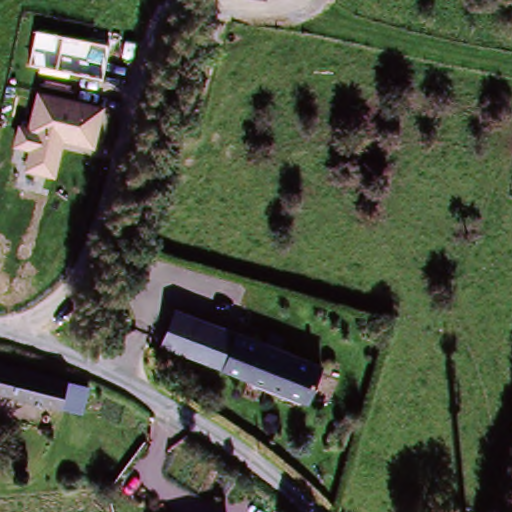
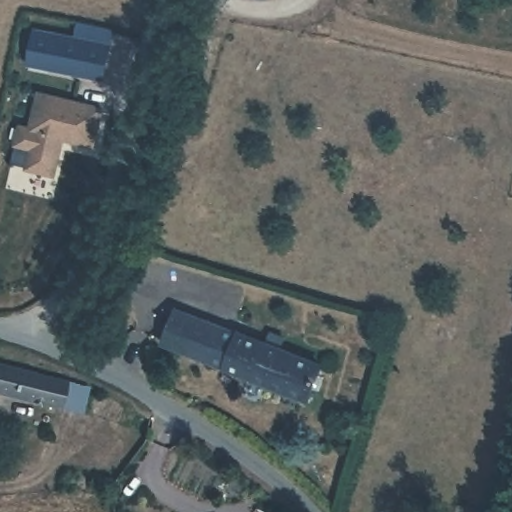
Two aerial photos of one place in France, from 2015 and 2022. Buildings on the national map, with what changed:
unchanged [(261,0),(264,0),(264,1),(261,0)]
new [(30,68),(36,34),(110,46),(104,81),(30,68)]
unchanged [(106,107),(96,148),(65,141),(56,178),(25,171),(28,150),(14,145),(19,122),(29,125),(38,90),(106,107)]
unchanged [(168,340),(182,304),(211,316),(198,351),(168,340)]
unchanged [(198,351),(211,316),(240,327),(226,362),(198,351)]
unchanged [(323,361),(310,395),(226,362),(240,327),(323,361)]
unchanged [(83,381),(78,406),(0,389),(0,363),(60,376),(83,381)]

